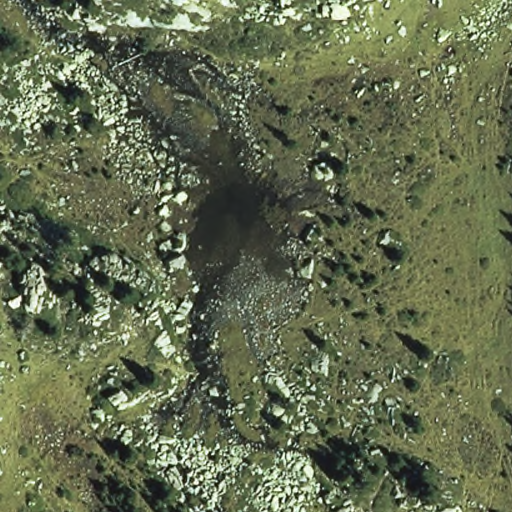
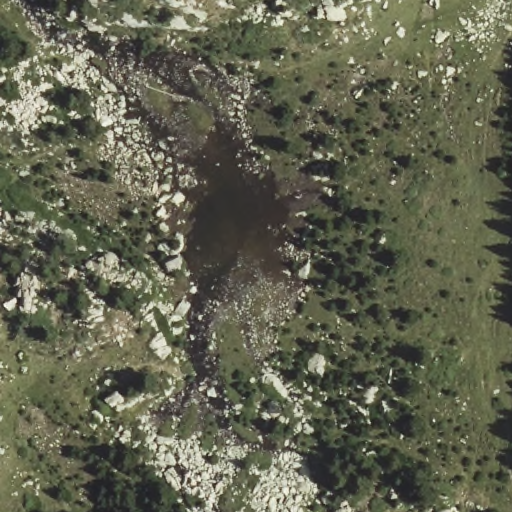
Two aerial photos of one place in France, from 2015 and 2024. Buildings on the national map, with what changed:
[]

